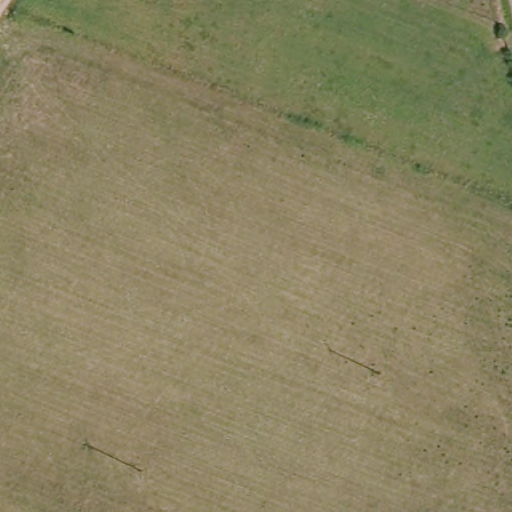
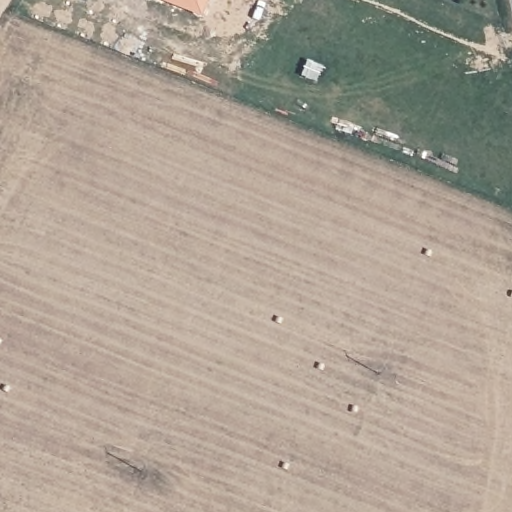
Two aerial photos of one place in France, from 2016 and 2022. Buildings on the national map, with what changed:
new [(165,0),(205,0),(200,14),(165,0)]

